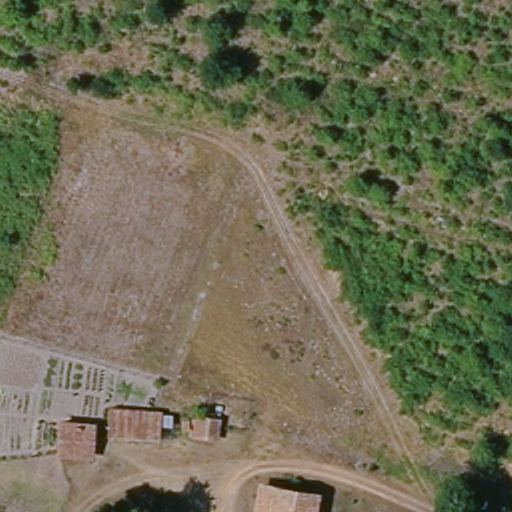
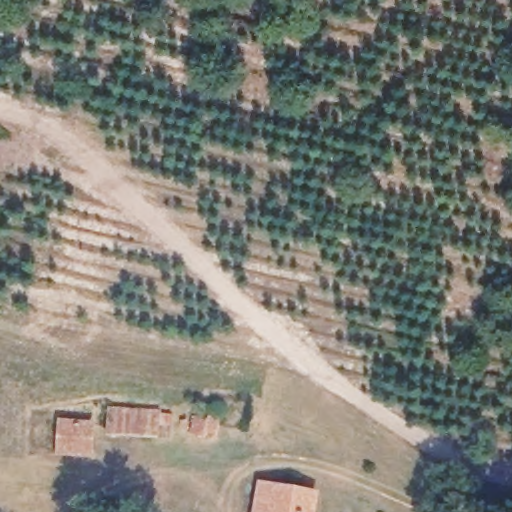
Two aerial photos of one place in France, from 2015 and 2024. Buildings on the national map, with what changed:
unchanged [(116,410),(163,416),(161,439),(114,434),(114,424),(116,410)]
unchanged [(66,416),(114,424),(114,434),(107,467),(59,452),(66,416)]
unchanged [(220,426),(218,445),(196,443),(198,424),(220,426)]
unchanged [(313,494),(310,512),(270,512),(273,490),(313,494)]

